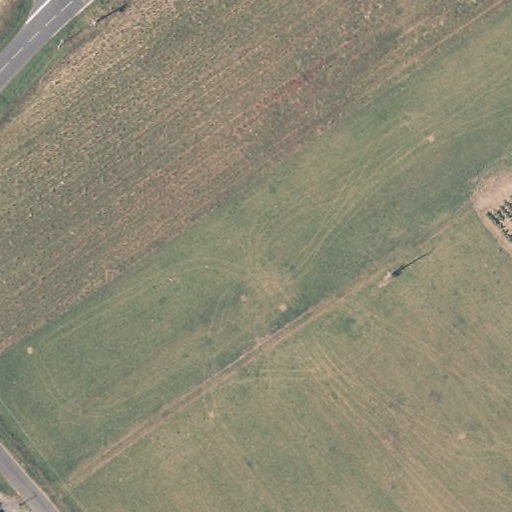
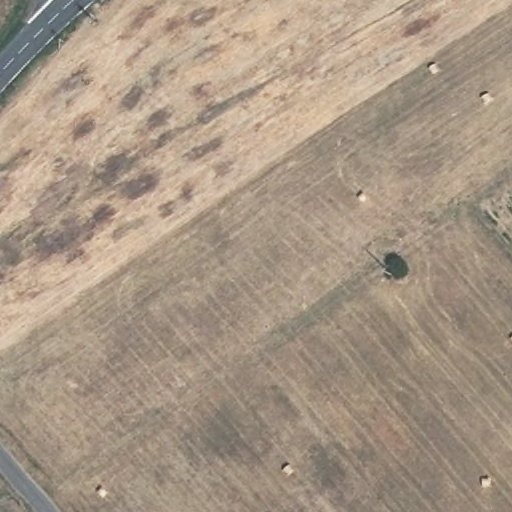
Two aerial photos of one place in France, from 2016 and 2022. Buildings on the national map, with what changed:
unchanged [(6,512),(0,512),(0,498),(10,509),(6,512)]

